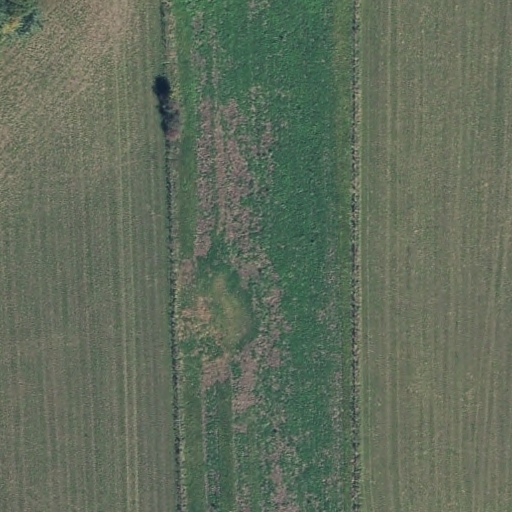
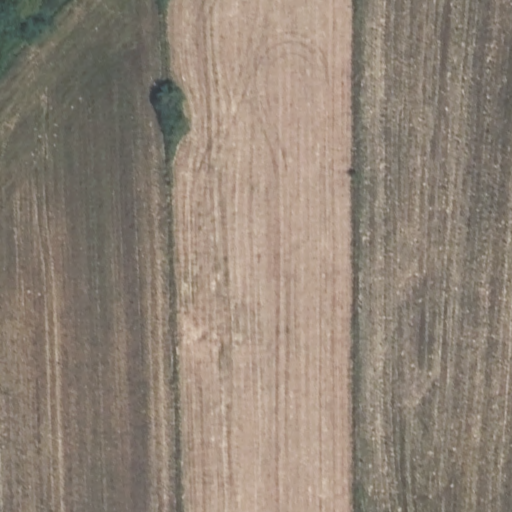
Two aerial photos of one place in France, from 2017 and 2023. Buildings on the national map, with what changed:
[]

